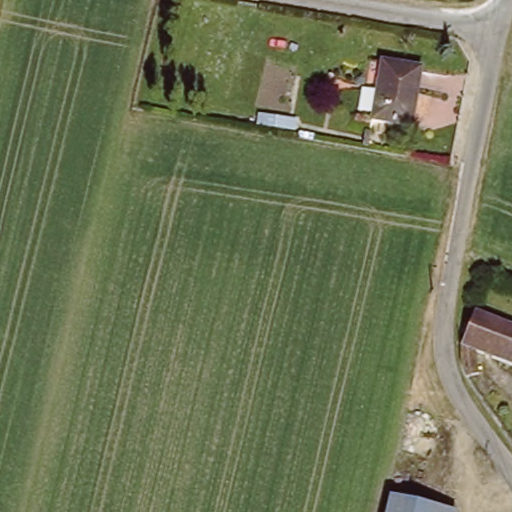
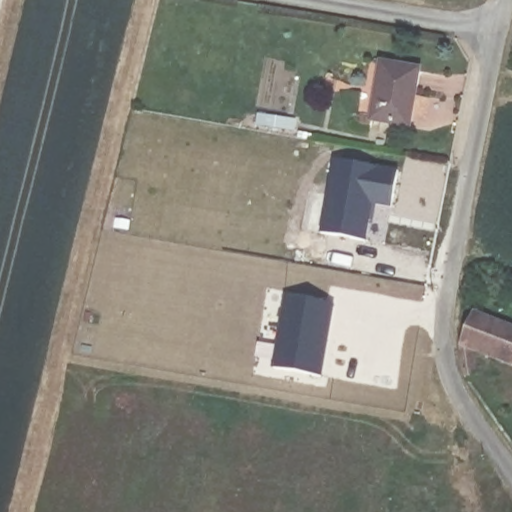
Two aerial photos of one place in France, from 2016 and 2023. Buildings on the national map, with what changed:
unchanged [(416,72),(409,120),(371,114),(378,67),(416,72)]
new [(334,161),(399,170),(393,207),(374,205),(368,241),(322,234),(334,161)]
new [(287,297),(336,305),(324,377),(276,369),(287,297)]
unchanged [(482,372),(466,375),(462,361),(461,346),(462,342),(468,328),(475,312),(512,327),(512,330),(501,360),(477,350),(482,372)]
unchanged [(512,330),(512,364),(501,360),(512,330)]
unchanged [(450,512),(388,512),(392,498),(450,512)]

